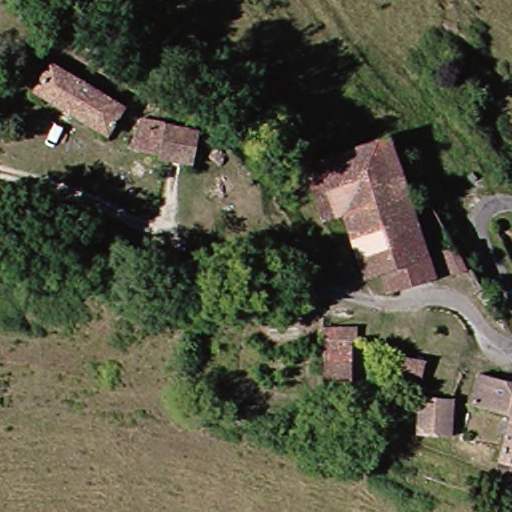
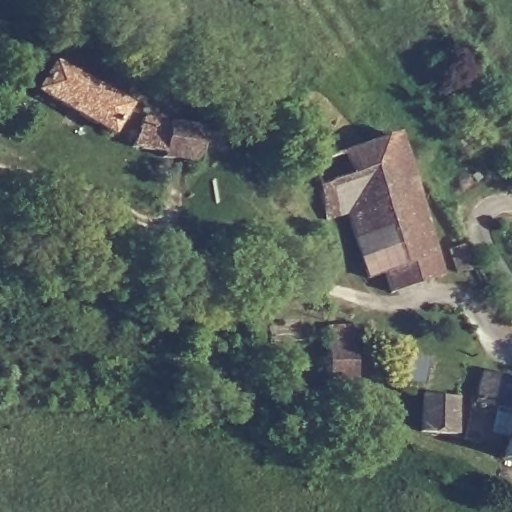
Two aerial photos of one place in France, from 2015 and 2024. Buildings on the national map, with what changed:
unchanged [(129,103),(116,133),(41,100),(53,70),(129,103)]
unchanged [(161,132),(164,122),(201,137),(191,164),(131,140),(137,124),(161,132)]
unchanged [(391,297),(384,282),(366,285),(346,217),(320,224),(303,166),(397,137),(436,265),(441,281),(391,297)]
unchanged [(458,247),(468,275),(456,280),(446,252),(458,247)]
unchanged [(360,344),(356,343),(355,382),(343,382),(342,395),(327,393),(329,326),(361,330),(360,344)]
unchanged [(426,391),(410,387),(416,360),(432,364),(426,391)]
unchanged [(488,377),(512,384),(512,416),(479,406),(488,377)]
unchanged [(453,441),(423,435),(428,402),(459,406),(453,441)]
unchanged [(512,435),(512,467),(503,464),(512,435)]

